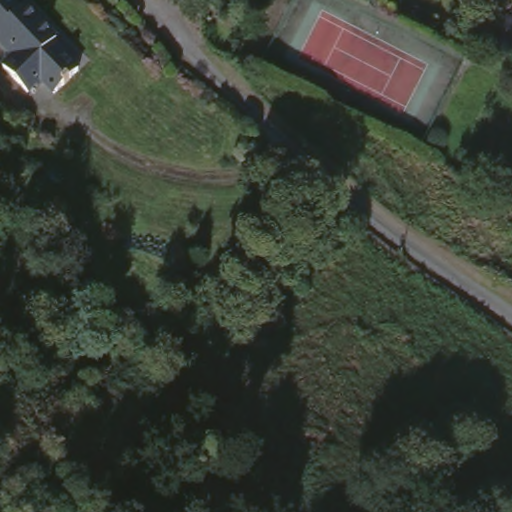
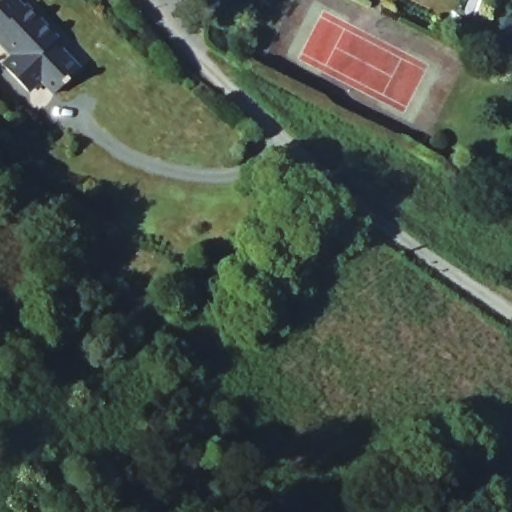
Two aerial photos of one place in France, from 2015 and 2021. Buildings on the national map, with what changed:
unchanged [(0,2),(2,0),(7,0),(17,10),(22,6),(57,42),(50,47),(75,73),(49,99),(36,85),(24,95),(0,70),(0,68),(11,59),(0,48),(0,2)]

